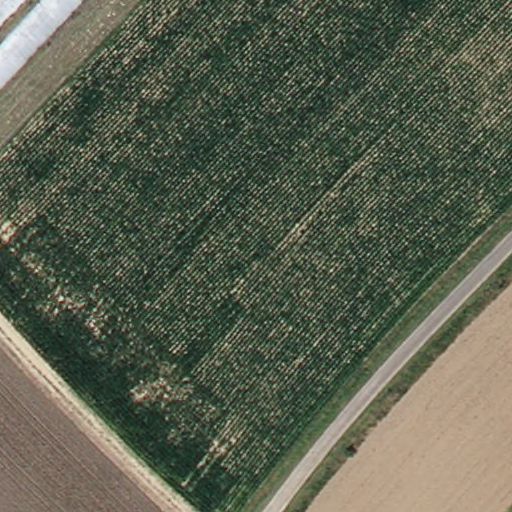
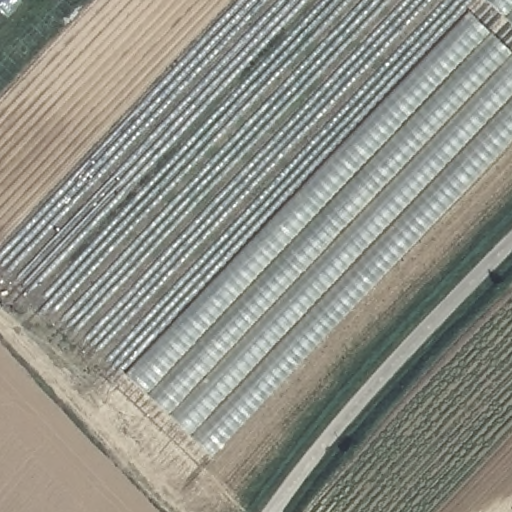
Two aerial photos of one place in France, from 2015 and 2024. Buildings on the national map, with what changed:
unchanged [(79,0),(0,83),(0,0),(79,0)]
new [(126,374),(480,0),(512,0),(512,140),(213,458),(126,374)]

